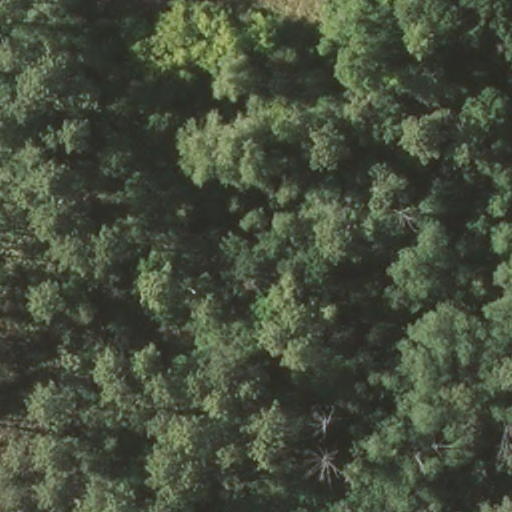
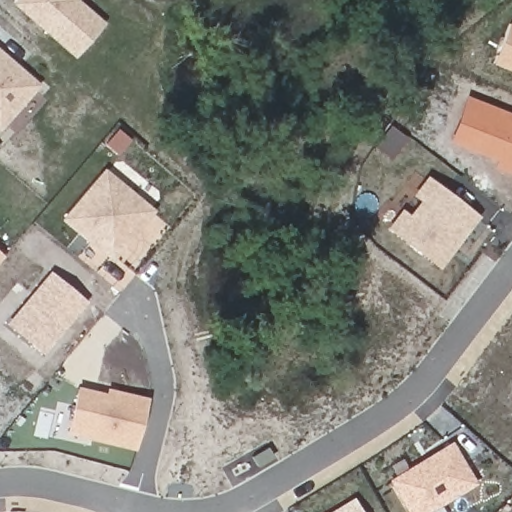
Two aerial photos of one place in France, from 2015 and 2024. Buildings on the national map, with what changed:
new [(102,25),(70,60),(8,5),(12,0),(76,0),(76,1),(102,25)]
demolished [(89,0),(113,0),(101,17),(86,4),(89,0)]
new [(512,26),(512,73),(491,65),(505,23),(512,26)]
new [(0,127),(0,54),(36,85),(0,127)]
new [(512,114),(512,170),(510,175),(493,169),(496,161),(449,141),(466,96),(512,114)]
new [(155,210),(113,262),(62,219),(104,168),(155,210)]
new [(476,217),(439,267),(392,227),(427,179),(476,217)]
new [(0,253),(4,257),(0,262),(0,253)]
new [(88,302),(44,355),(5,323),(50,271),(88,302)]
new [(66,436),(77,387),(106,394),(107,388),(148,397),(135,452),(66,436)]
new [(454,441),(479,486),(433,512),(406,512),(387,480),(454,441)]
new [(351,496),(360,512),(325,512),(351,496)]

